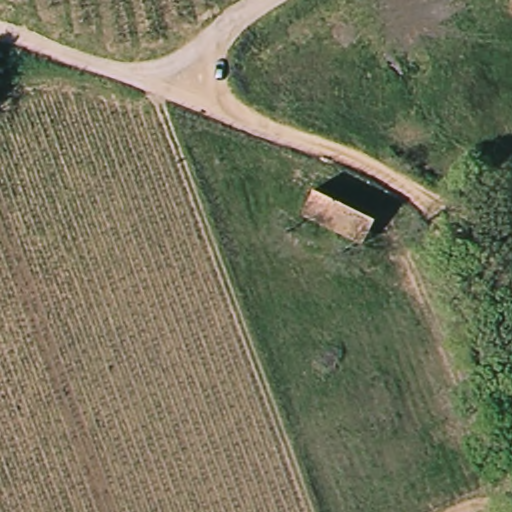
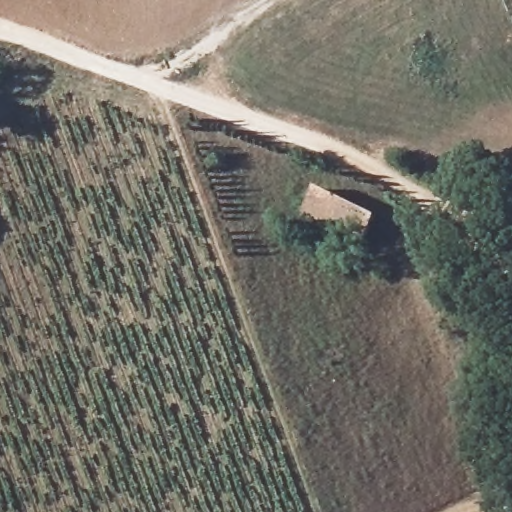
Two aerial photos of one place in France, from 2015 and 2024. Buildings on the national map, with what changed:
unchanged [(361,249),(293,215),(305,191),(372,227),(361,249)]

